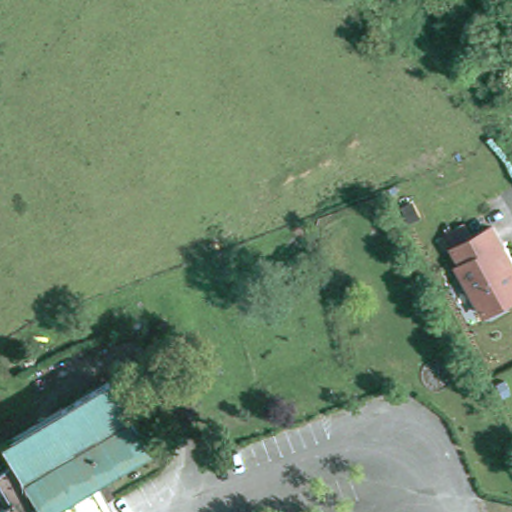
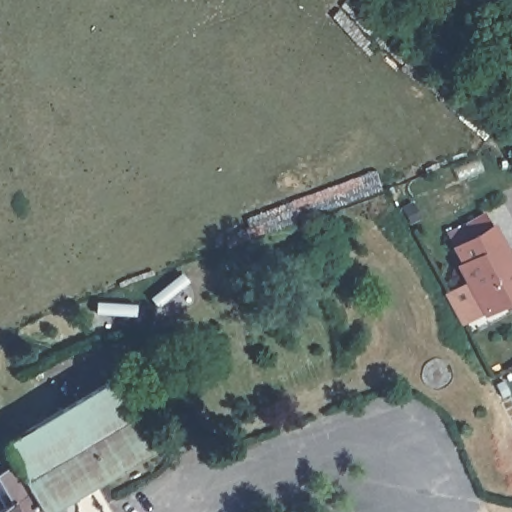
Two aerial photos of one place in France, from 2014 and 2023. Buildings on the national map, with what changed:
unchanged [(512,253),(512,301),(485,317),(453,264),(458,260),(450,245),(494,220),(512,253)]
unchanged [(0,498),(0,489),(2,487),(0,483),(0,462),(10,456),(0,439),(47,410),(106,375),(146,441),(68,486),(72,503),(69,512),(0,512),(0,501),(1,500),(0,498)]

